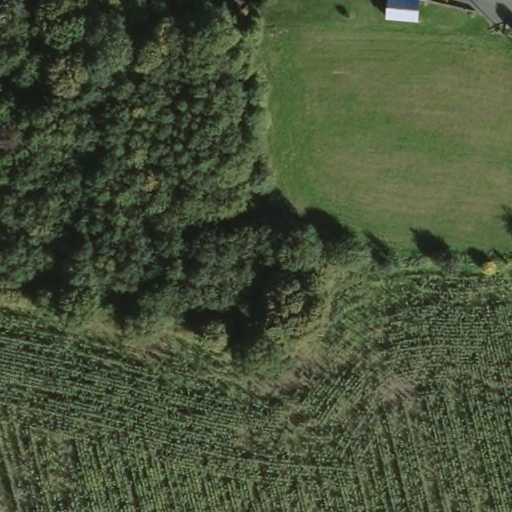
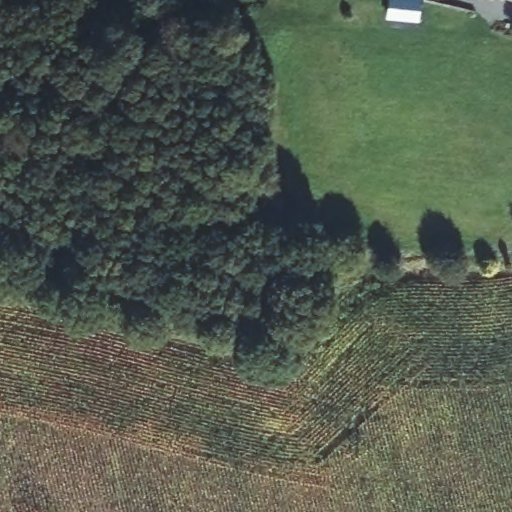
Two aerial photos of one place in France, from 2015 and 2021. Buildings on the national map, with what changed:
unchanged [(417,3),(414,25),(386,20),(374,18),(376,0),(384,0),(388,1),(388,0),(406,0),(417,3)]
unchanged [(491,0),(509,0),(508,5),(491,0)]

